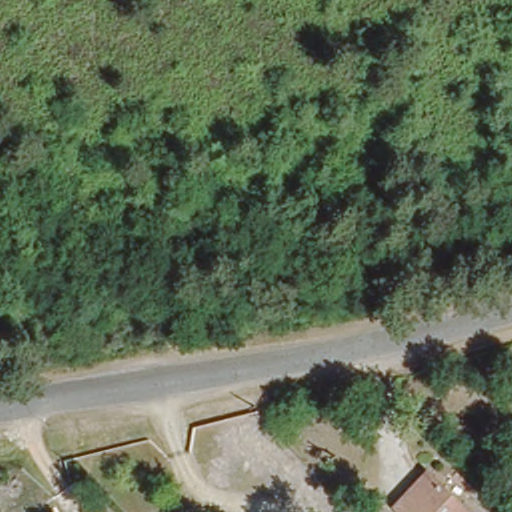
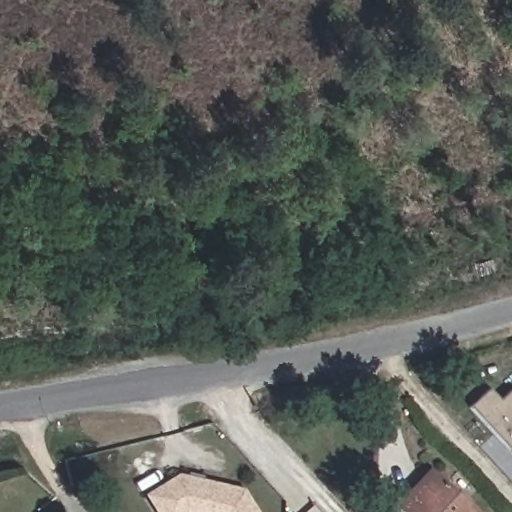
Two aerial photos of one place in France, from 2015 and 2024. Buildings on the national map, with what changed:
new [(512,392),(512,451),(472,409),(492,390),(502,401),(512,392)]
unchanged [(430,470),(470,512),(406,512),(396,502),(430,470)]
new [(144,496),(177,474),(242,489),(256,512),(154,512),(144,496)]

